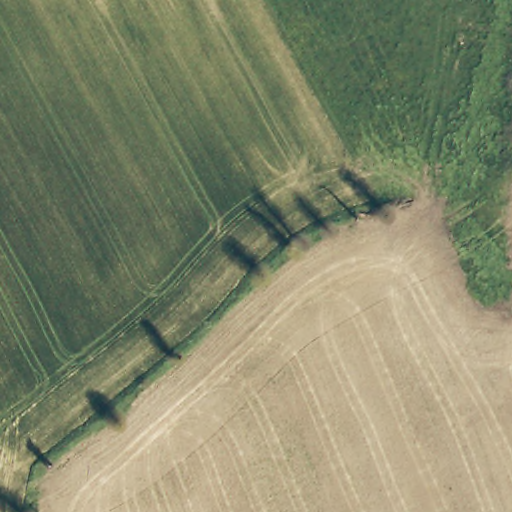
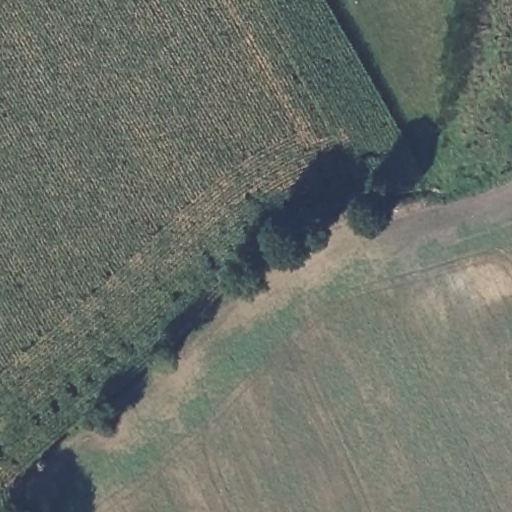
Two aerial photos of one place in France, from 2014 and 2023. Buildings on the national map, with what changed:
[]

